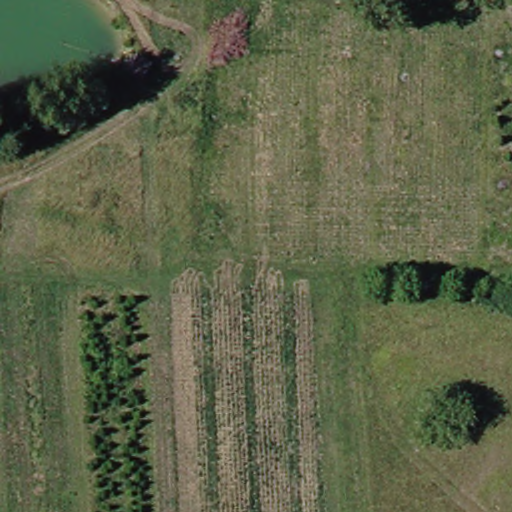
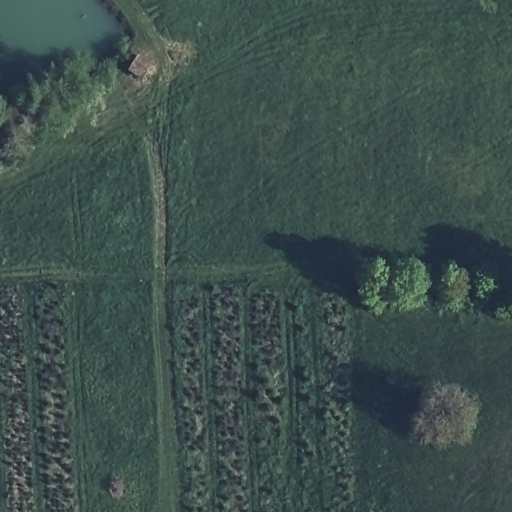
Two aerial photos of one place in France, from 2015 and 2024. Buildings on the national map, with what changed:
unchanged [(155,63),(142,80),(128,72),(140,53),(155,63)]

